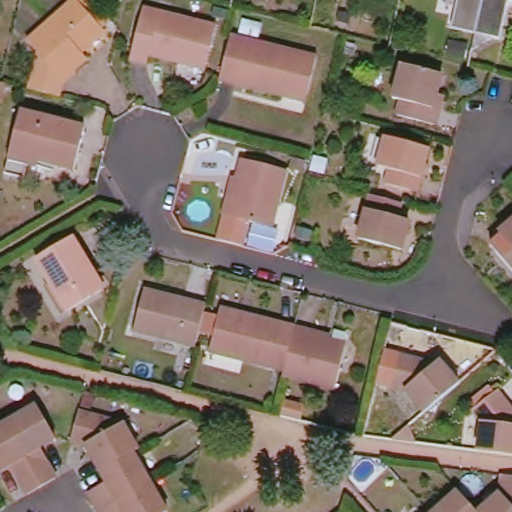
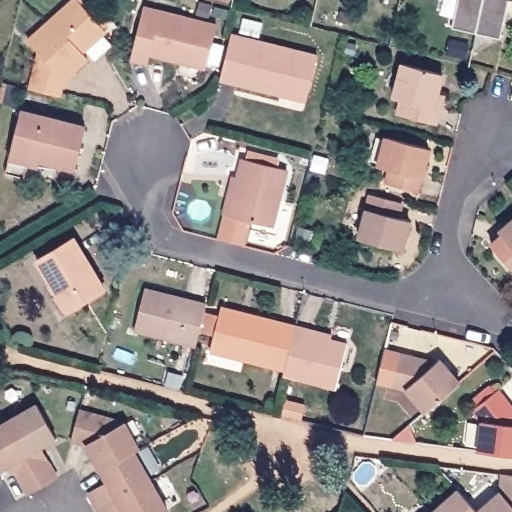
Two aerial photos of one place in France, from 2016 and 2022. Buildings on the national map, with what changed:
unchanged [(105,25),(109,30),(84,52),(90,59),(67,80),(62,100),(38,94),(19,89),(30,41),(75,0),(81,0),(105,25)]
unchanged [(477,35),(452,30),(458,0),(485,0),(512,0),(512,3),(509,2),(499,40),(477,35)]
unchanged [(182,60),(153,52),(150,62),(133,57),(147,5),(219,25),(210,60),(209,66),(182,60)]
unchanged [(241,29),(245,14),(265,20),(262,33),(241,29)]
unchanged [(280,91),(222,79),(233,35),(320,56),(310,92),(309,100),(280,91)]
unchanged [(393,110),(397,96),(392,95),(402,60),(442,71),(434,105),(440,106),(436,121),(393,110)]
unchanged [(32,162),(29,176),(9,171),(15,145),(25,109),(89,125),(78,166),(59,161),(57,168),(32,162)]
unchanged [(386,185),(390,170),(378,167),(387,135),(430,145),(418,193),(386,185)]
unchanged [(233,175),(239,176),(244,156),(289,168),(274,225),(250,220),(243,245),(219,239),(225,214),(223,214),(227,196),(233,175)]
unchanged [(359,245),(370,202),(402,210),(397,224),(410,227),(402,255),(359,245)]
unchanged [(495,251),(507,241),(498,231),(512,219),(512,270),(495,251)]
unchanged [(41,258),(79,236),(97,266),(94,267),(106,289),(72,310),(41,258)]
unchanged [(195,351),(134,335),(145,293),(206,309),(195,351)]
unchanged [(289,370),(214,351),(224,314),(252,321),(254,315),(300,326),(289,370)]
unchanged [(289,370),(300,326),(317,330),(316,335),(352,344),(340,387),(288,375),(289,370)]
unchanged [(427,411),(406,386),(395,383),(402,352),(437,361),(442,358),(460,381),(427,411)]
unchanged [(485,450),(490,420),(480,409),(499,391),(505,399),(512,408),(512,454),(485,450)]
unchanged [(304,420),(284,415),(288,400),(307,405),(304,420)]
unchanged [(19,466),(17,462),(31,407),(34,405),(53,439),(32,450),(35,455),(39,453),(54,480),(27,495),(14,473),(12,470),(15,467),(19,466)]
unchanged [(16,460),(0,470),(0,426),(31,407),(17,462),(16,460)]
unchanged [(125,421),(142,449),(137,452),(172,511),(171,512),(101,512),(91,494),(110,482),(88,445),(74,441),(82,410),(125,421)]
unchanged [(460,486),(480,509),(503,491),(505,475),(512,475),(512,512),(431,512),(460,486)]

